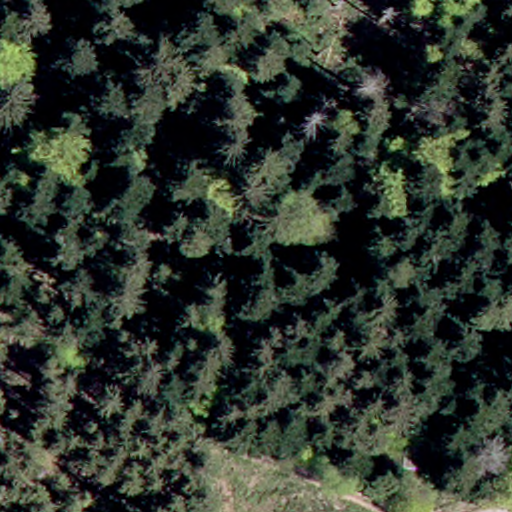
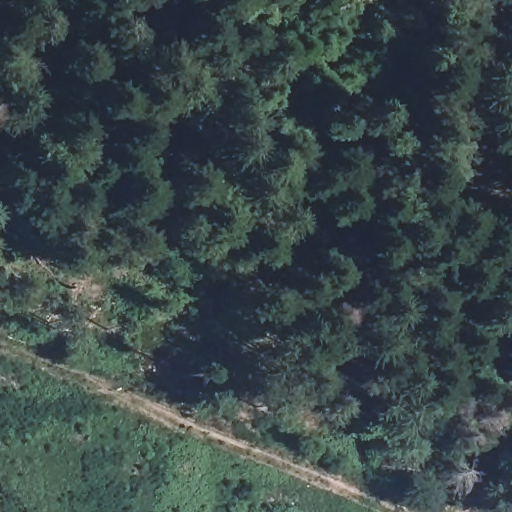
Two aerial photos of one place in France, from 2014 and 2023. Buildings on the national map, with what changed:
unchanged [(416,445),(415,464),(385,462),(387,443),(416,445)]

